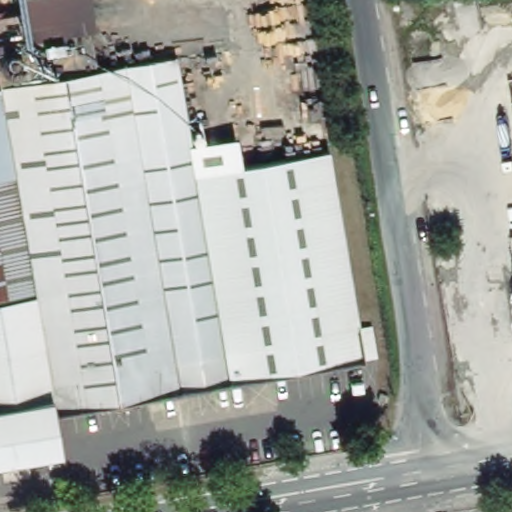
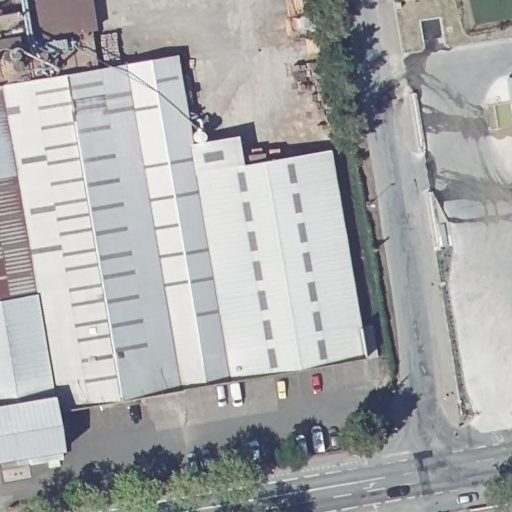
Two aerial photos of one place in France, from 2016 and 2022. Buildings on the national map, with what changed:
unchanged [(93,29),(89,30),(28,40),(22,9),(21,0),(89,0),(93,29)]
unchanged [(173,61),(191,173),(326,149),(362,358),(228,380),(178,389),(178,391),(52,412),(0,97),(0,45),(9,88),(173,61)]
unchanged [(27,463),(26,456),(0,461),(0,97),(52,412),(59,457),(27,463)]
unchanged [(511,235),(512,234),(512,238),(511,235)]

